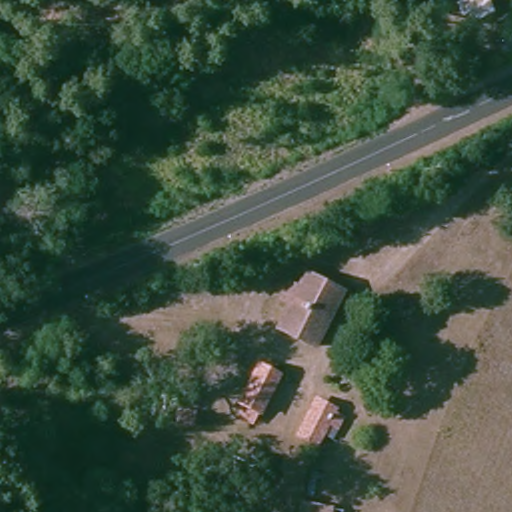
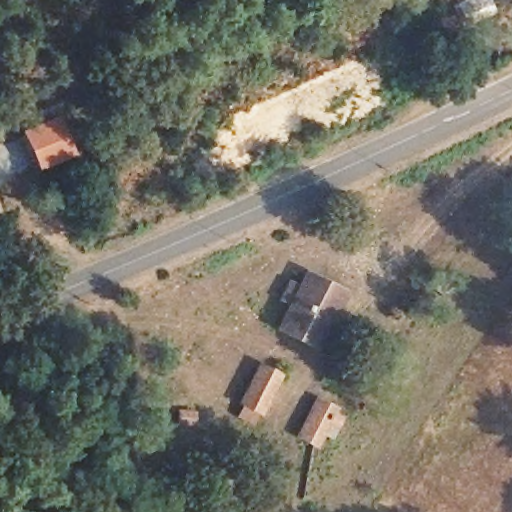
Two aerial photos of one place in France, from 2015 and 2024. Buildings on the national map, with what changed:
new [(72,155),(37,169),(20,129),(57,115),(72,155)]
unchanged [(280,337),(307,285),(342,303),(315,355),(280,337)]
unchanged [(240,421),(243,409),(241,409),(260,371),(277,380),(261,417),(256,415),(251,427),(240,421)]
unchanged [(340,407),(337,413),(343,416),(339,424),(332,422),(320,442),(300,433),(320,397),(335,405),(340,407)]
unchanged [(343,511),(343,512),(300,512),(303,501),(343,511)]

